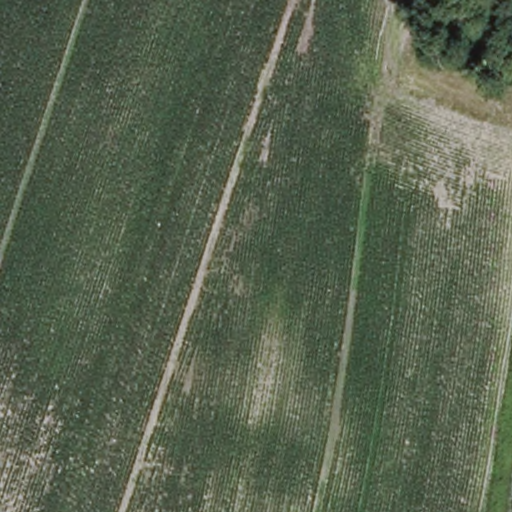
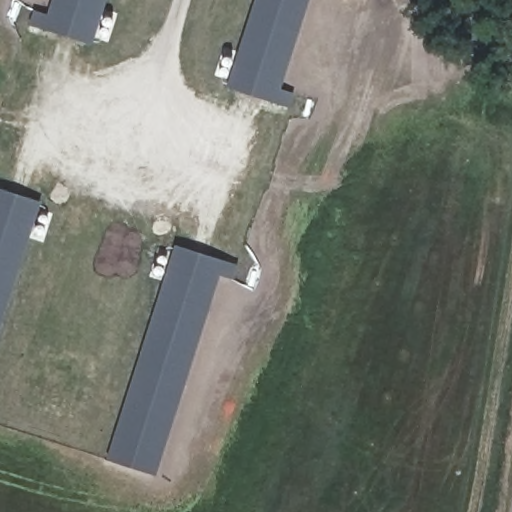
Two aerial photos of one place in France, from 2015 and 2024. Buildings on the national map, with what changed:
new [(54,0),(109,0),(94,46),(31,26),(34,11),(49,15),(54,0)]
new [(283,89),(296,94),(293,108),(229,89),(257,0),(311,0),(283,89)]
new [(0,333),(0,190),(40,204),(0,333)]
new [(108,460),(174,247),(238,267),(233,284),(219,280),(158,475),(108,460)]

